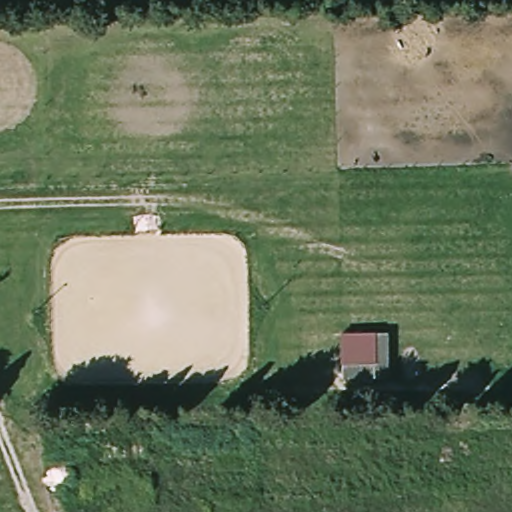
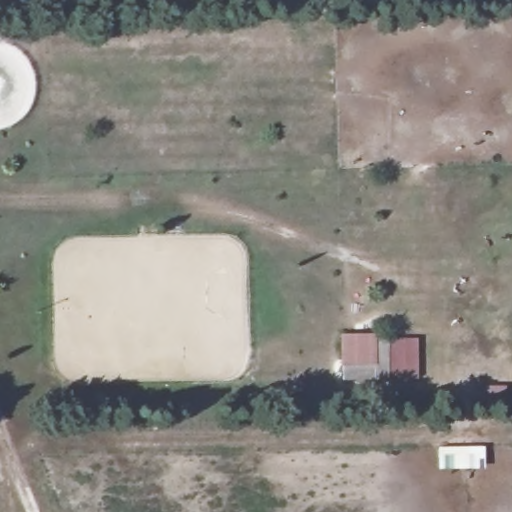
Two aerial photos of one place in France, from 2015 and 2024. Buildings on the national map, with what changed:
unchanged [(388,334),(389,378),(344,380),(341,334),(388,334)]

